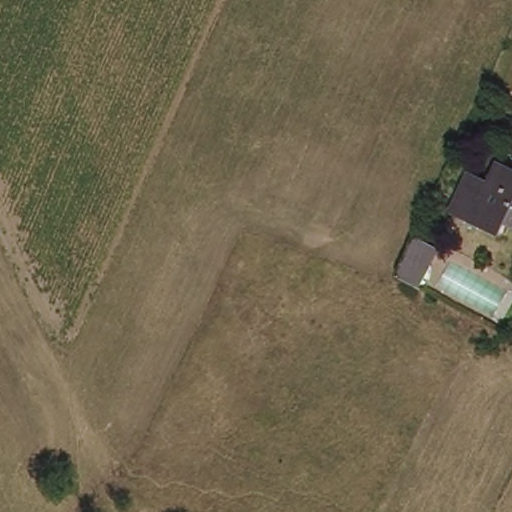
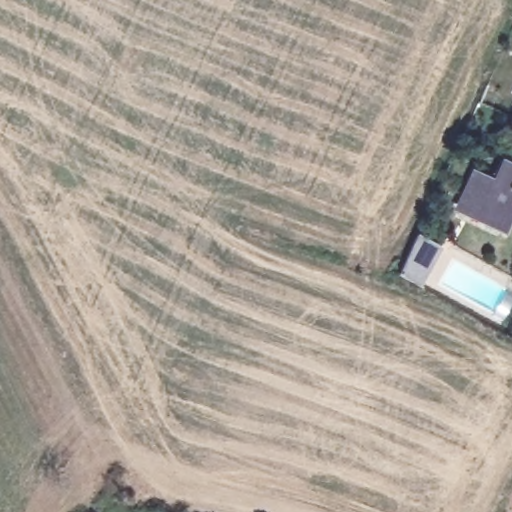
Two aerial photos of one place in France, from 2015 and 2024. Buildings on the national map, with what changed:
unchanged [(464,188),(490,201),(501,178),(512,183),(512,241),(504,237),(498,249),(469,236),(446,226),(455,208),(464,188)]
unchanged [(444,247),(427,287),(399,276),(418,236),(444,247)]

